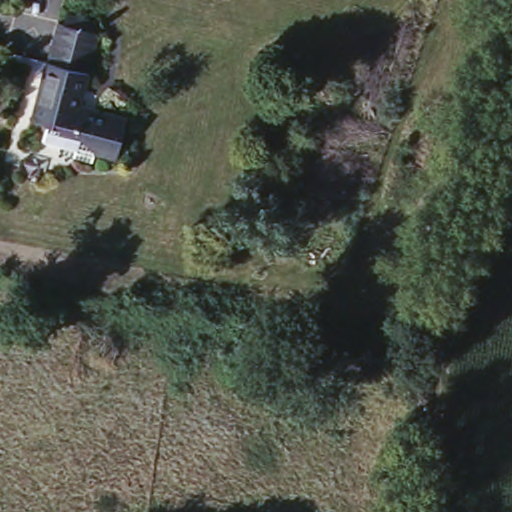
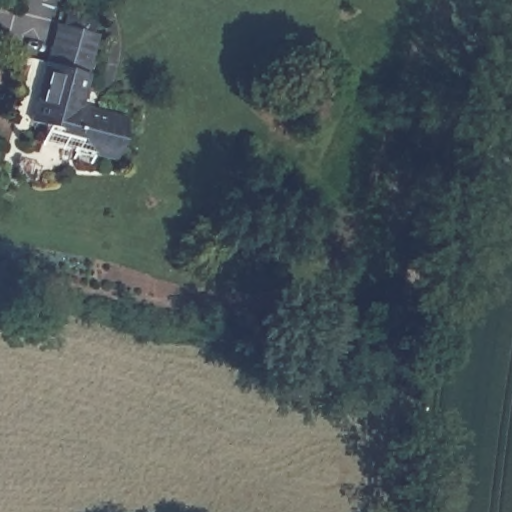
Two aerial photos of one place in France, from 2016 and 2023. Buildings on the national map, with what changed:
unchanged [(96,18),(85,56),(94,61),(82,102),(121,111),(111,151),(33,128),(58,7),(96,18)]

